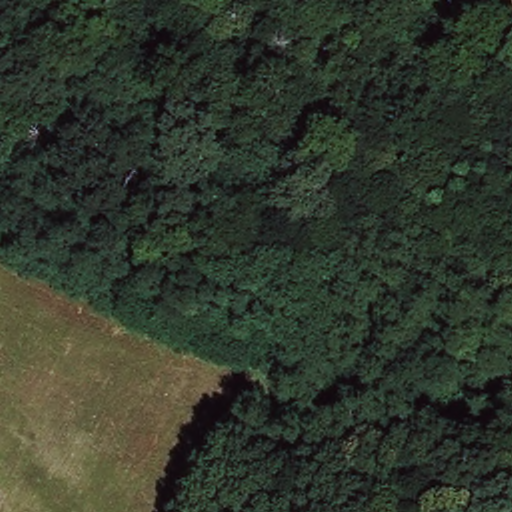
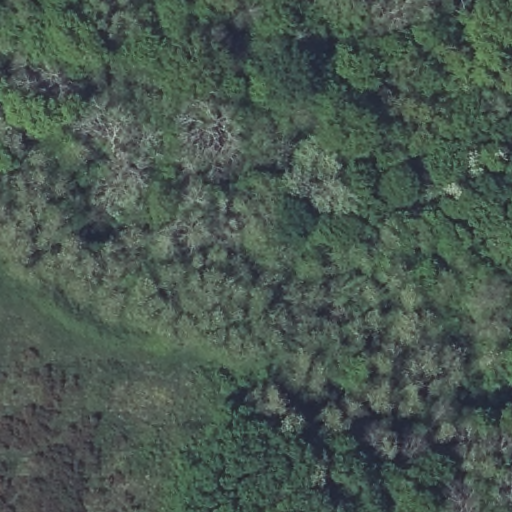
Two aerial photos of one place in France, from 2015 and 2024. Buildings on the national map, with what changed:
[]

